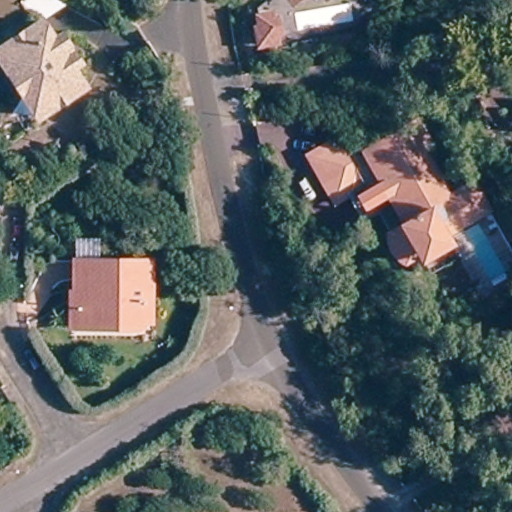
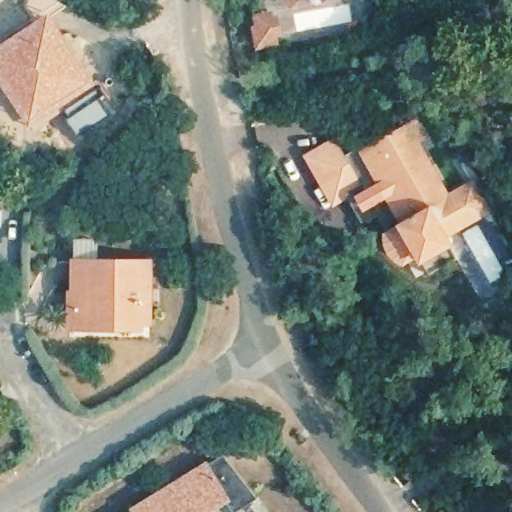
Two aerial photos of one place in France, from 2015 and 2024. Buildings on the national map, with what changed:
demolished [(277,0),(288,0),(281,5),(277,0)]
unchanged [(273,45),(258,48),(256,31),(259,31),(257,20),(268,18),(273,45)]
unchanged [(12,87),(0,68),(0,55),(3,53),(36,30),(42,32),(51,46),(54,44),(62,48),(74,65),(73,74),(71,75),(80,90),(79,95),(46,118),(37,124),(18,95),(12,87)]
unchanged [(412,127),(415,131),(416,134),(417,139),(411,142),(443,199),(423,210),(430,222),(439,237),(451,258),(421,275),(410,254),(397,262),(393,261),(388,258),(383,253),(381,245),(381,239),(382,235),(398,227),(376,187),(358,154),(366,150),(409,125),(412,127)]
unchanged [(319,209),(295,165),(325,149),(349,192),(319,209)]
unchanged [(443,199),(467,185),(482,213),(439,237),(430,222),(423,210),(443,199)]
unchanged [(151,264),(150,324),(140,324),(140,331),(69,330),(69,296),(73,296),(74,263),(151,264)]
new [(227,499),(207,512),(131,512),(133,511),(130,506),(206,459),(209,464),(223,453),(258,495),(233,511),(227,499)]

